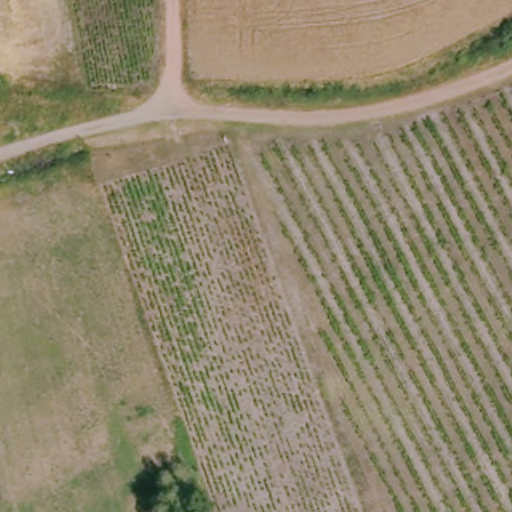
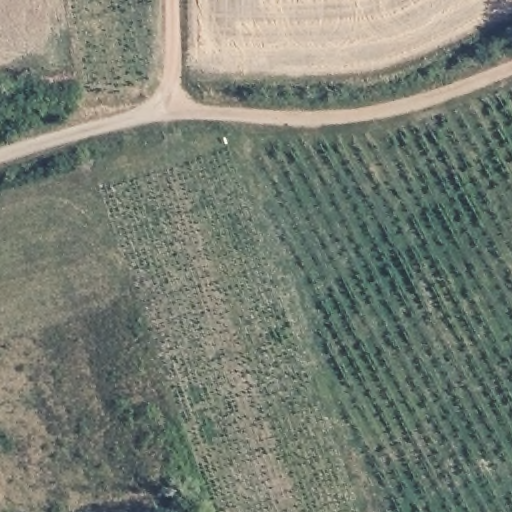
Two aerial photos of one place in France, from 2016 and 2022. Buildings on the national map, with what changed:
[]

